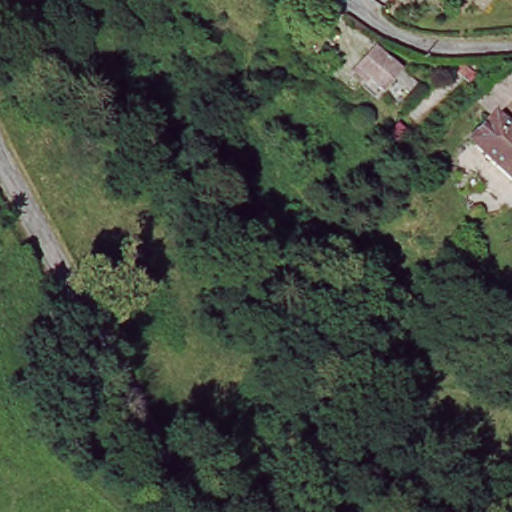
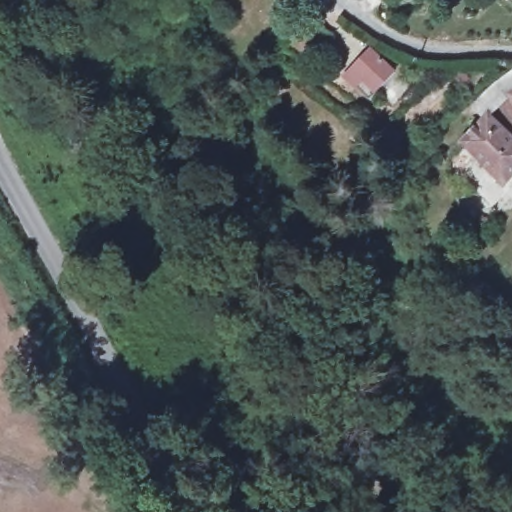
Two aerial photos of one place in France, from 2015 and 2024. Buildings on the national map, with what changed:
unchanged [(386,76),(369,94),(357,84),(362,78),(349,66),(362,52),(386,76)]
unchanged [(512,92),(512,103),(509,94),(512,92)]
unchanged [(461,144),(486,117),(488,118),(495,124),(512,109),(512,170),(500,182),(461,144)]
unchanged [(489,215),(465,225),(458,201),(480,195),(489,215)]

